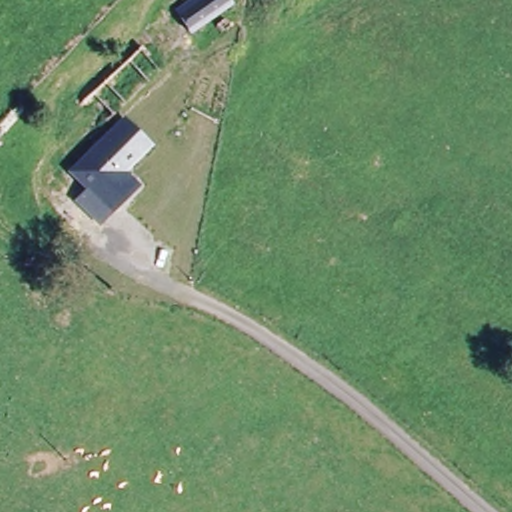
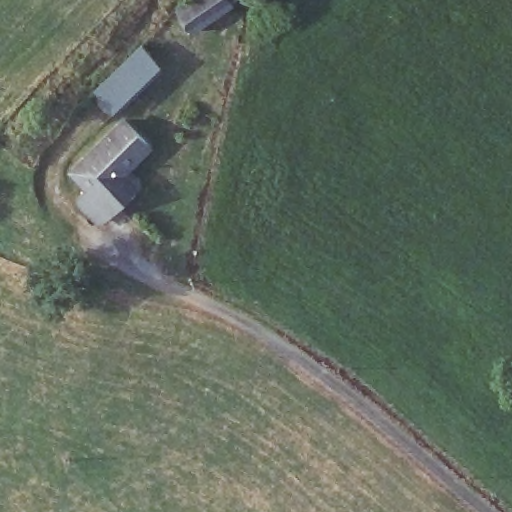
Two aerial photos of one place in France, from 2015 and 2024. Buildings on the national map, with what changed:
unchanged [(234,5),(191,33),(173,8),(186,0),(231,0),(234,5)]
new [(164,68),(117,113),(93,89),(140,44),(164,68)]
unchanged [(155,145),(127,173),(141,186),(99,226),(74,201),(86,189),(69,171),(124,116),(155,145)]

